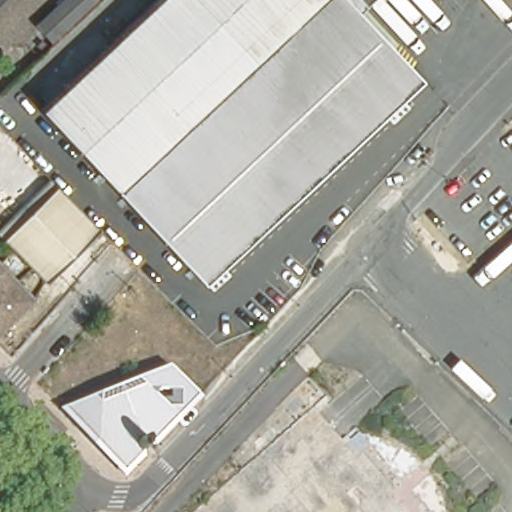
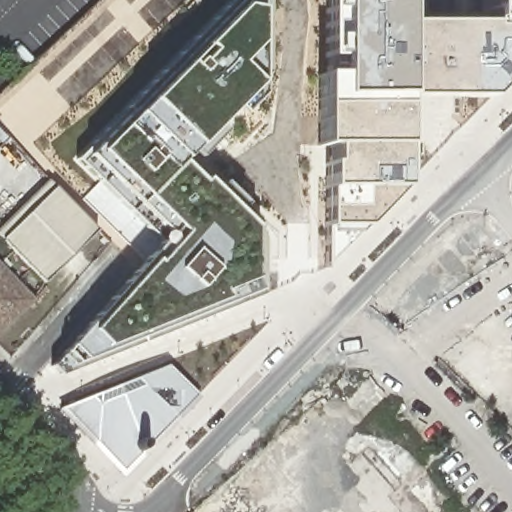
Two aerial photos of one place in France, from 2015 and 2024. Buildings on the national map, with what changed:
demolished [(203,283),(40,110),(158,0),(368,0),(356,12),(418,78),(203,283)]
new [(179,157),(263,234),(262,295),(65,371),(52,361),(167,240),(79,153),(227,0),(266,0),(264,73),(179,157)]
new [(401,95),(396,95),(401,145),(403,187),(395,187),(364,224),(321,267),(323,227),(323,225),(324,188),(323,188),(323,163),(325,163),(320,147),(315,147),(314,76),(316,0),(402,0),(402,11),(490,14),(490,0),(512,0),(512,75),(493,95),(401,95)]
unchanged [(59,191),(97,228),(44,281),(3,239),(0,237),(0,229),(48,179),(59,191)]
unchanged [(33,298),(32,299),(0,331),(0,265),(33,298)]
unchanged [(98,451),(56,409),(163,365),(194,395),(140,452),(119,473),(98,451)]
demolished [(317,397),(349,434),(356,428),(360,432),(410,499),(419,512),(188,512),(317,397)]
demolished [(410,499),(360,432),(356,428),(363,422),(365,424),(373,427),(382,429),(390,431),(397,434),(404,436),(410,439),(415,443),(420,446),(425,451),(429,456),(434,462),(438,469),(442,476),(446,484),(449,491),(450,498),(452,505),(452,511),(452,512),(419,512),(410,499)]

